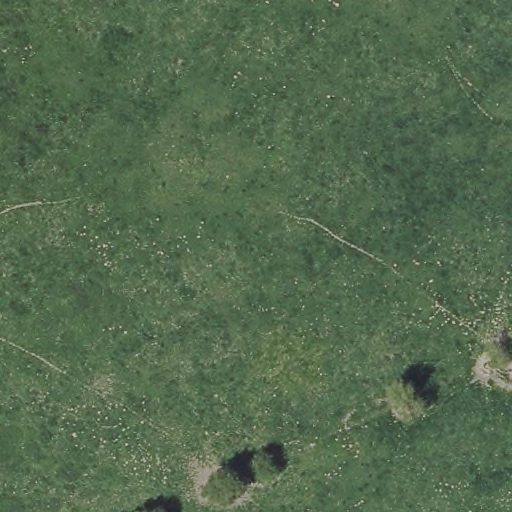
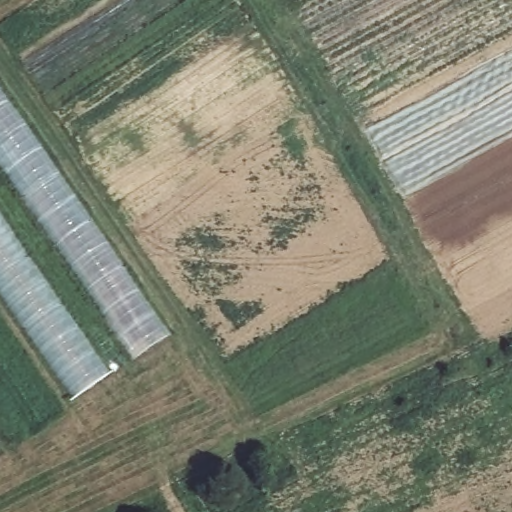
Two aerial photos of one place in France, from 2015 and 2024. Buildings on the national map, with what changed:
new [(0,172),(0,89),(169,338),(131,362),(0,172)]
new [(0,299),(0,217),(109,377),(70,402),(0,299)]

